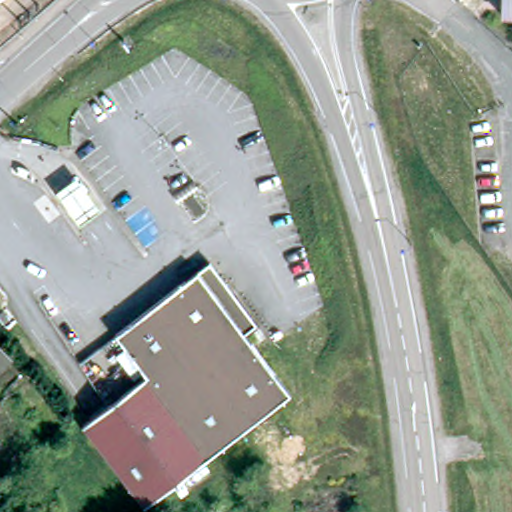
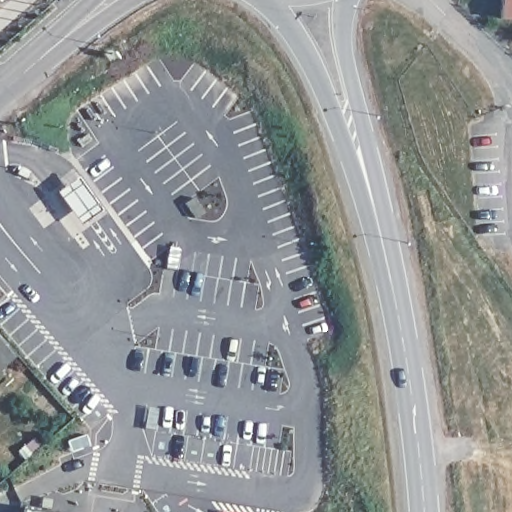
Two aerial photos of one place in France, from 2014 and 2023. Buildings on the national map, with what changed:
unchanged [(503,13),(504,0),(512,0),(512,14),(503,13)]
new [(20,168),(30,172),(27,179),(17,175),(20,168)]
new [(77,179),(100,210),(80,225),(57,194),(77,179)]
new [(196,198),(206,213),(198,219),(188,203),(196,198)]
demolished [(117,333),(145,312),(212,262),(258,322),(247,331),(294,392),(233,439),(146,506),(87,424),(147,378),(117,333)]
new [(0,370),(0,343),(13,357),(0,370)]
new [(20,508),(47,512),(20,512),(20,508)]

